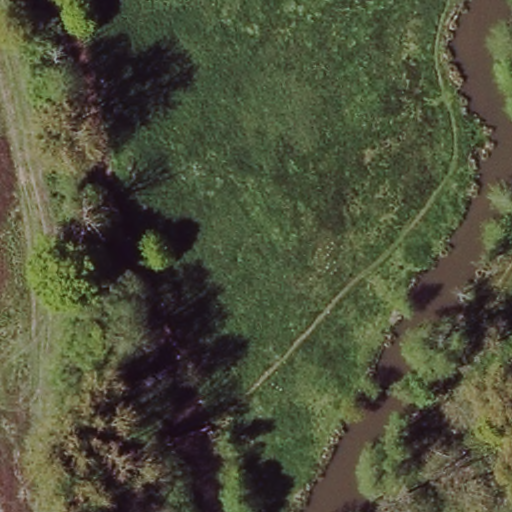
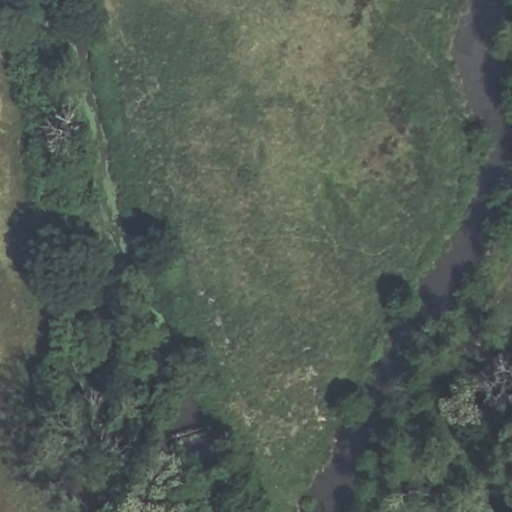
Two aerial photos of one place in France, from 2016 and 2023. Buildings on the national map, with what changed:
[]

